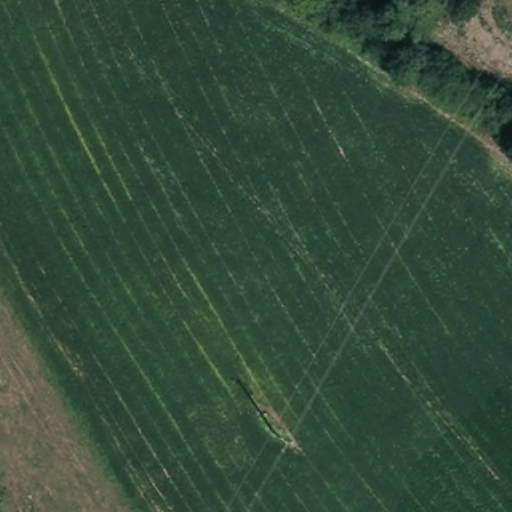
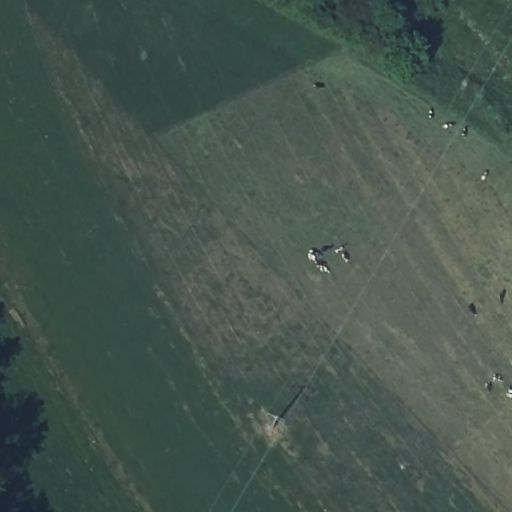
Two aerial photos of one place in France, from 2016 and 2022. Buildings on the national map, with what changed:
[]

